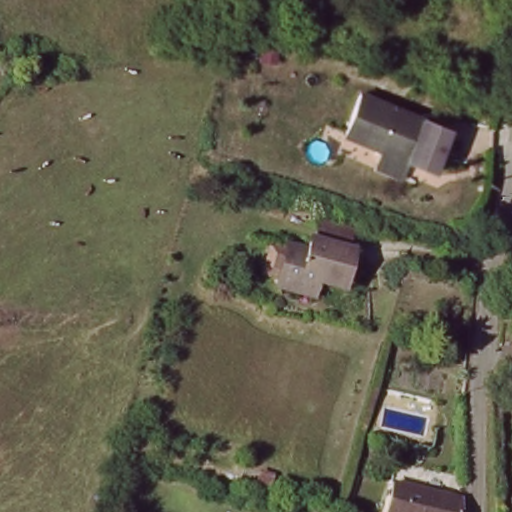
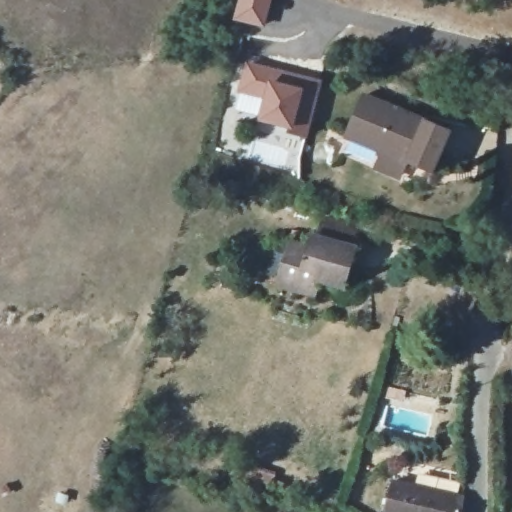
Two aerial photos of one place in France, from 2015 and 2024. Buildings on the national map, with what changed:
new [(233,20),(239,0),(273,0),(265,28),(233,20)]
new [(324,82),(308,140),(289,134),(290,129),(260,121),(266,100),(237,92),(246,64),(324,82)]
unchanged [(372,158),(378,145),(341,126),(362,85),(447,130),(426,170),(399,156),(392,169),(372,158)]
unchanged [(349,285),(323,280),(319,296),(284,288),(294,248),(313,252),(316,239),(323,240),(327,219),(355,226),(356,226),(350,248),(357,249),(349,285)]
unchanged [(391,483),(459,498),(459,502),(459,512),(384,512),(391,483)]

